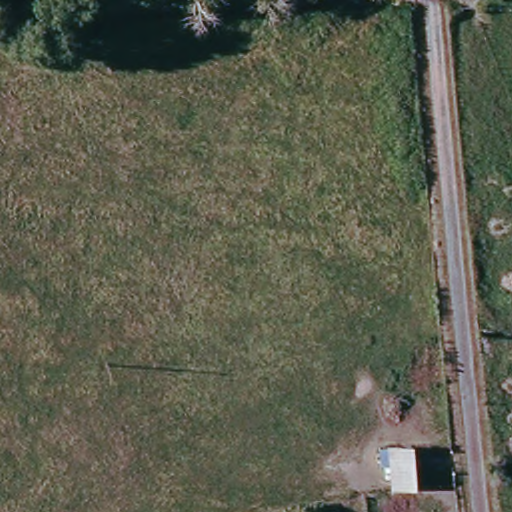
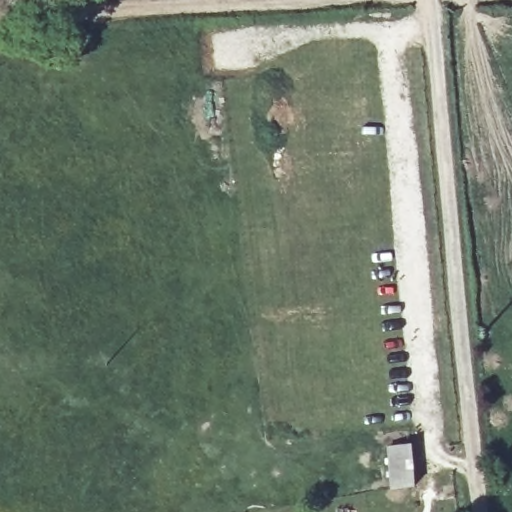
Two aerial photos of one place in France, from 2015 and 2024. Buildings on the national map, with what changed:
unchanged [(386,444),(414,442),(418,487),(389,487),(386,444)]

